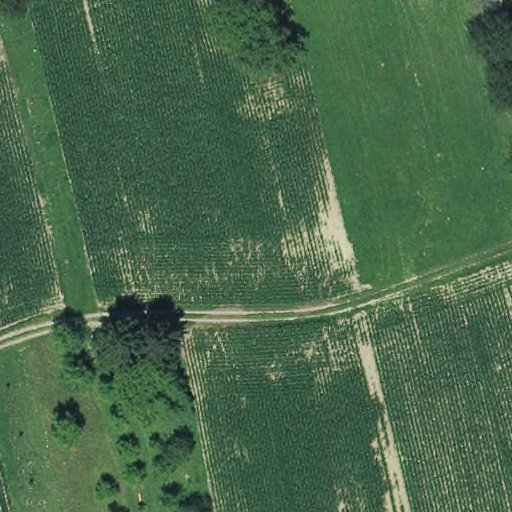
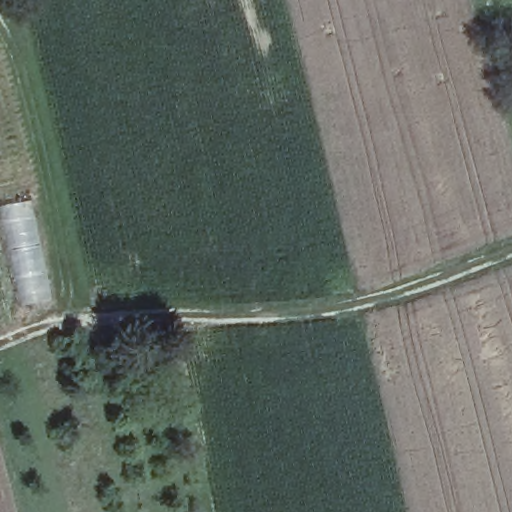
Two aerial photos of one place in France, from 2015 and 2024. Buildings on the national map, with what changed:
new [(56,299),(20,307),(0,221),(0,207),(32,197),(56,299)]

